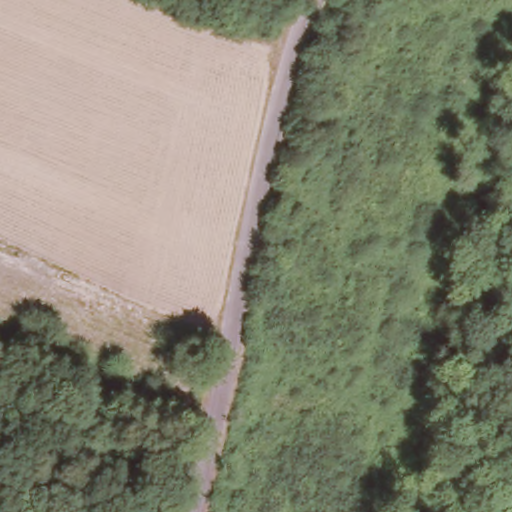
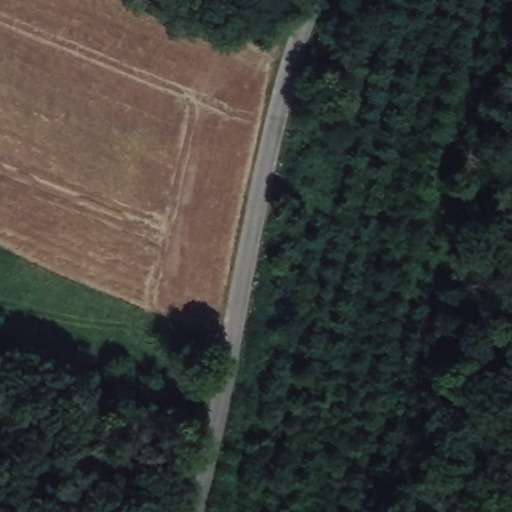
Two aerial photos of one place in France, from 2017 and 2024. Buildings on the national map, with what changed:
[]

